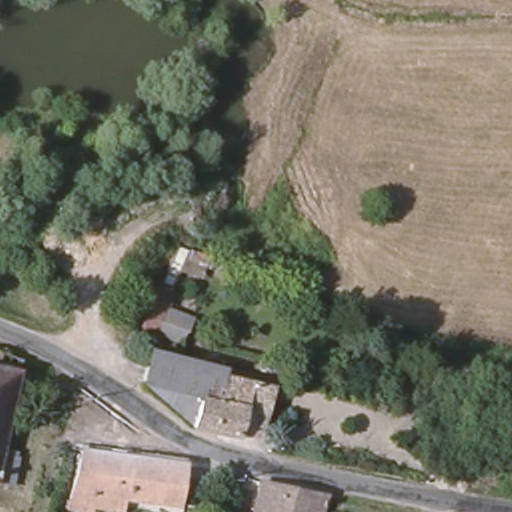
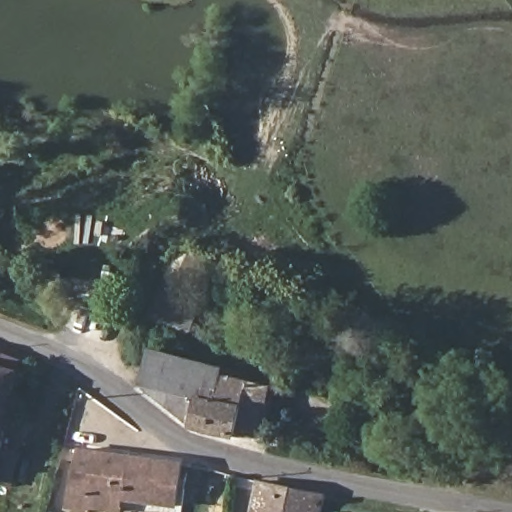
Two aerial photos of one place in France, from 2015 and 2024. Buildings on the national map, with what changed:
unchanged [(176,247),(218,259),(188,345),(148,323),(176,247)]
unchanged [(0,447),(0,353),(18,358),(0,447)]
unchanged [(260,367),(259,381),(271,384),(253,443),(225,437),(242,379),(247,363),(260,367)]
unchanged [(167,365),(225,371),(224,376),(207,433),(161,398),(167,365)]
unchanged [(225,437),(207,433),(224,376),(242,379),(225,437)]
unchanged [(178,464),(172,503),(118,499),(118,493),(71,490),(76,451),(178,464)]
unchanged [(10,485),(0,483),(0,452),(16,456),(10,485)]
unchanged [(281,481),(280,484),(326,493),(319,512),(271,512),(272,507),(255,503),(261,476),(281,481)]
unchanged [(105,495),(114,497),(112,506),(103,504),(104,498),(105,495)]
unchanged [(255,503),(272,507),(271,512),(253,512),(255,503)]

